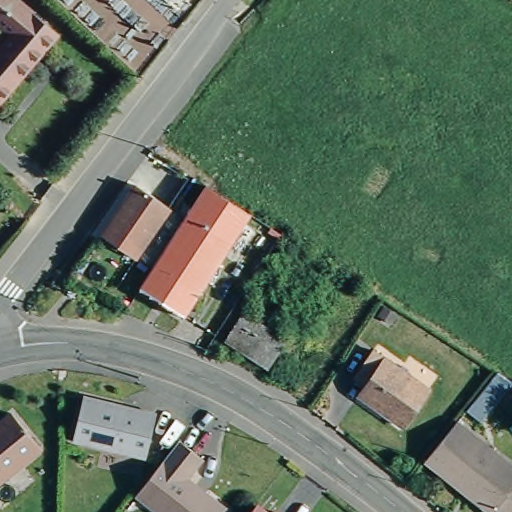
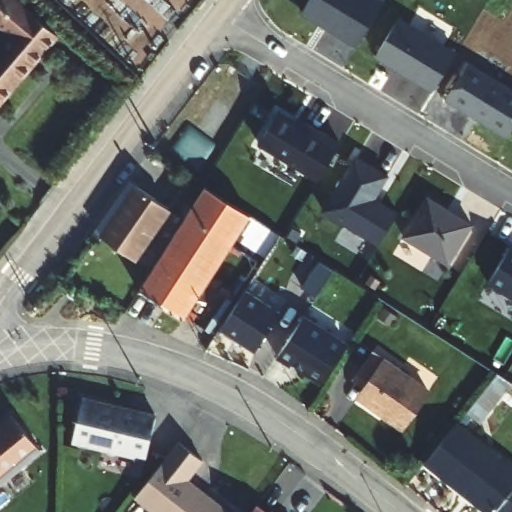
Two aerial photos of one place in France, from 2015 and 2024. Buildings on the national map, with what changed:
unchanged [(0,19),(0,0),(24,0),(62,33),(1,105),(0,104),(0,52),(16,32),(0,19)]
new [(386,0),(356,48),(303,15),(311,0),(386,0)]
new [(460,54),(435,97),(374,61),(398,19),(460,54)]
new [(512,134),(508,140),(445,102),(467,64),(512,91),(512,134)]
new [(317,184),(259,148),(279,117),(294,125),(297,119),(340,144),(317,184)]
new [(390,177),(376,201),(398,214),(377,248),(320,213),(353,157),(390,177)]
unchanged [(210,185),(255,213),(222,260),(182,316),(139,286),(210,185)]
unchanged [(135,187),(167,212),(132,262),(98,237),(135,187)]
new [(427,197),(474,226),(448,268),(401,240),(427,197)]
demolished [(255,213),(272,222),(240,271),(222,260),(255,213)]
new [(512,249),(512,301),(488,286),(510,247),(512,249)]
unchanged [(250,315),(290,341),(271,368),(231,343),(250,315)]
new [(290,341),(307,317),(347,342),(322,385),(301,372),(303,370),(292,362),(290,367),(278,358),(290,341)]
unchanged [(376,352),(432,395),(400,435),(382,420),(386,414),(362,393),(365,386),(355,377),(376,352)]
unchanged [(512,372),(512,377),(480,421),(467,409),(501,365),(512,372)]
unchanged [(86,399),(160,412),(152,457),(77,444),(86,399)]
unchanged [(16,412),(45,445),(0,486),(0,426),(16,412)]
unchanged [(466,491),(426,464),(450,432),(456,424),(495,452),(512,464),(512,480),(493,510),(466,491)]
unchanged [(182,438),(206,457),(190,477),(233,510),(232,512),(164,512),(140,494),(182,438)]
unchanged [(512,512),(497,512),(493,510),(512,480),(512,512)]
new [(258,505),(267,512),(253,512),(258,505)]

